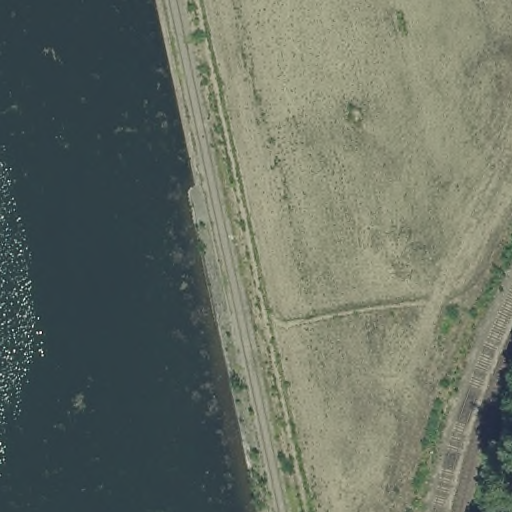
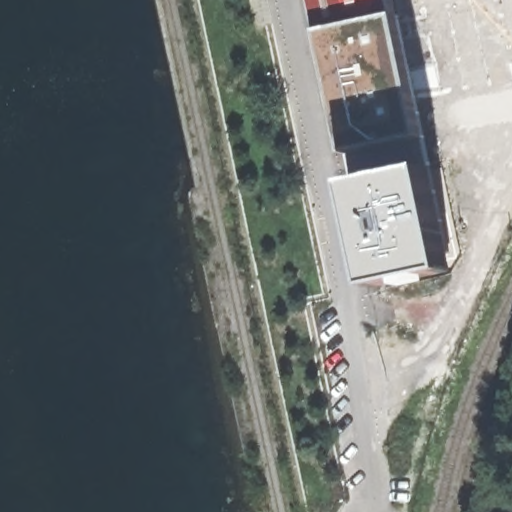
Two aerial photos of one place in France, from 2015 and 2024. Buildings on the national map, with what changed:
new [(401,14),(412,60),(416,59),(423,90),(417,94),(433,164),(442,162),(459,249),(455,251),(460,275),(373,293),(369,268),(358,268),(358,250),(347,184),(353,183),(321,27),(401,14)]

